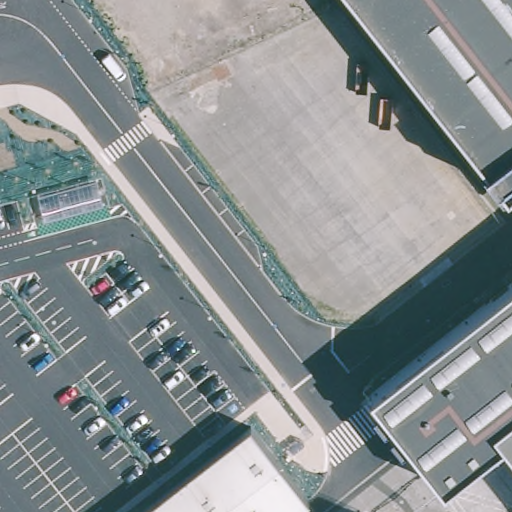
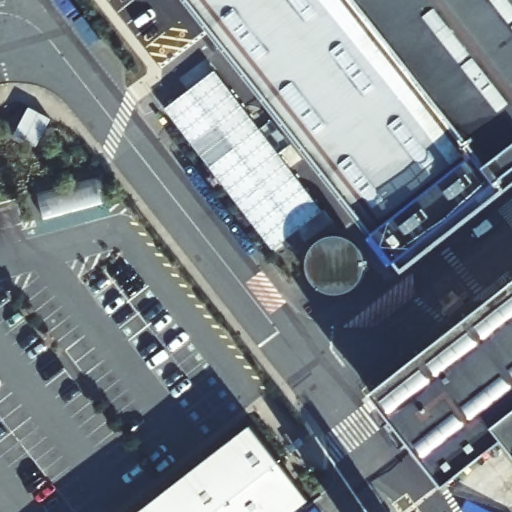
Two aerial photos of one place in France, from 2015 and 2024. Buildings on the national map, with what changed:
new [(389,228),(212,0),(359,0),(484,158),(389,228)]
unchanged [(507,186),(360,0),(512,0),(512,182),(507,186)]
new [(322,211),(273,250),(165,107),(215,70),(322,211)]
unchanged [(506,432),(445,481),(371,387),(512,277),(512,440),(506,432)]
unchanged [(248,425),(307,497),(287,512),(137,512),(248,425)]

